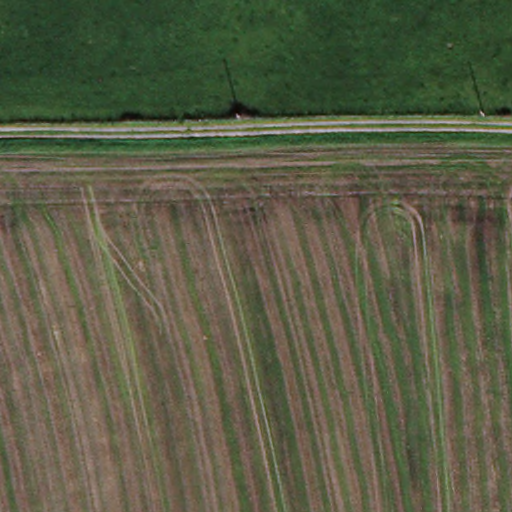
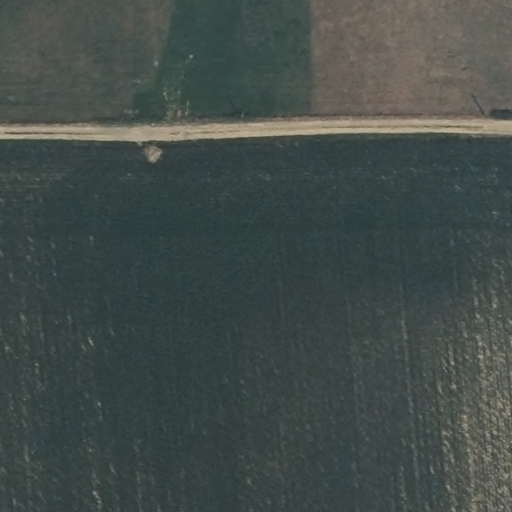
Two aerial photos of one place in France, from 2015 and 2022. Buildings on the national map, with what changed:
[]

